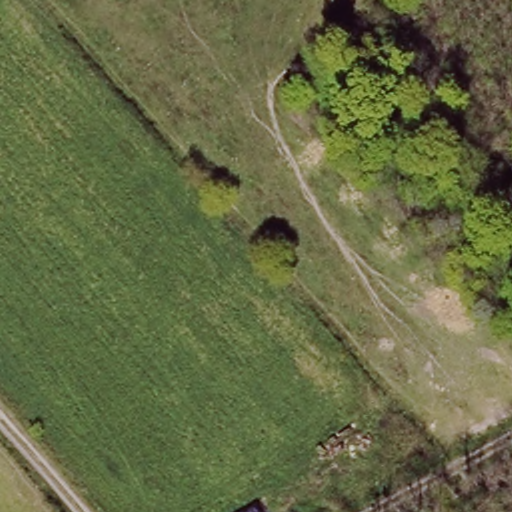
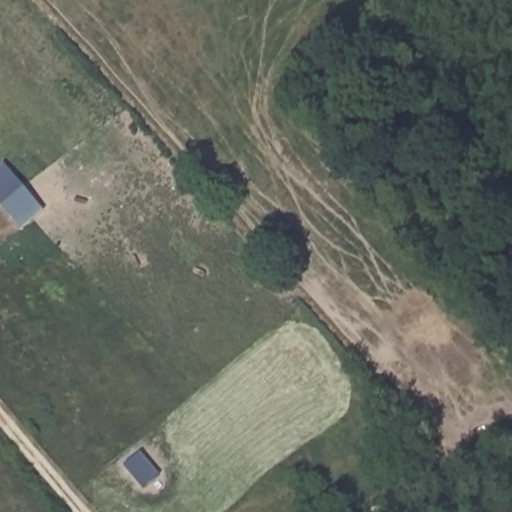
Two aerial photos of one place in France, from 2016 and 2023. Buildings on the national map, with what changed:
new [(45,211),(23,230),(0,203),(0,172),(6,166),(45,211)]
new [(144,456),(163,476),(148,489),(130,468),(144,456)]

